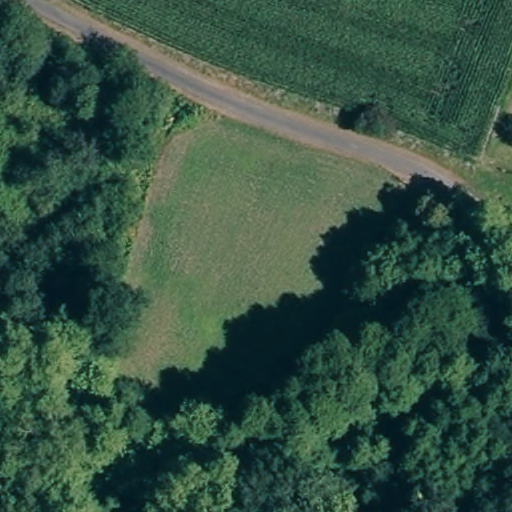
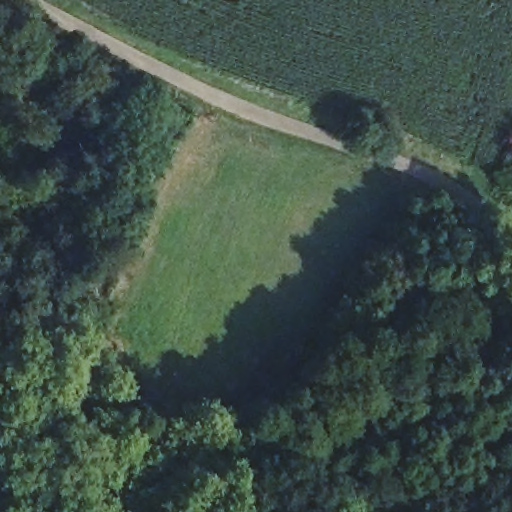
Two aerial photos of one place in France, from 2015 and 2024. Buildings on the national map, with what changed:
[]

